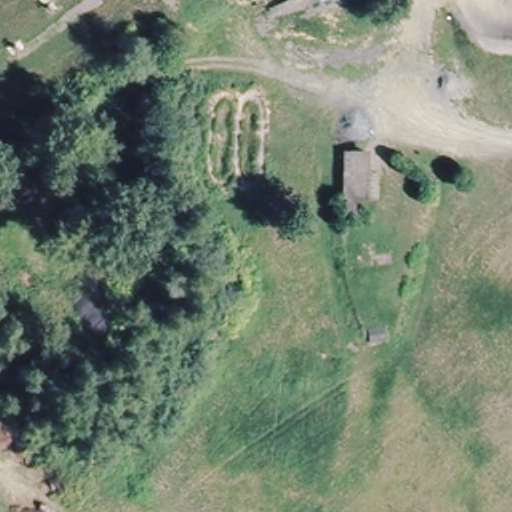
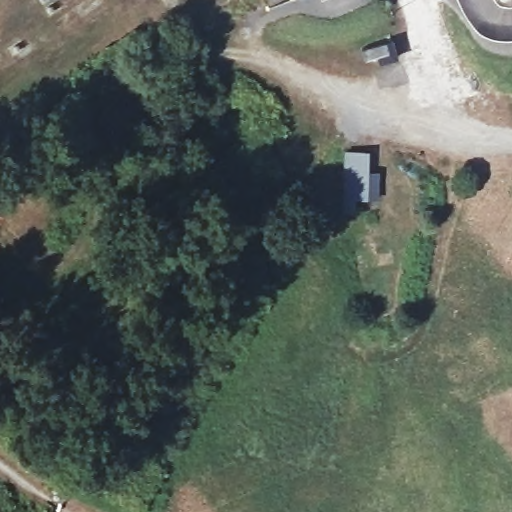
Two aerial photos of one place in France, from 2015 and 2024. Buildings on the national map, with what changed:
unchanged [(340,199),(340,147),(367,147),(367,167),(379,168),(379,198),(340,199)]

